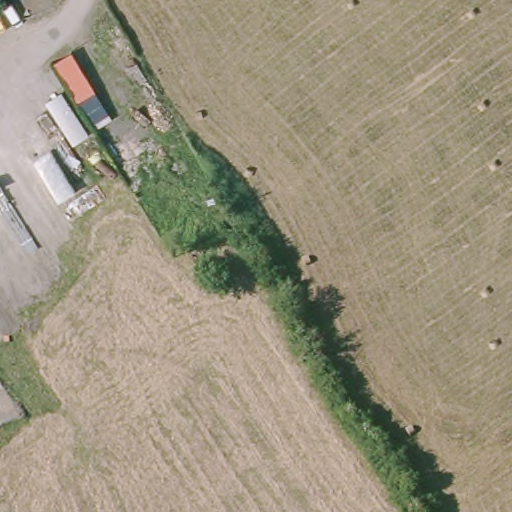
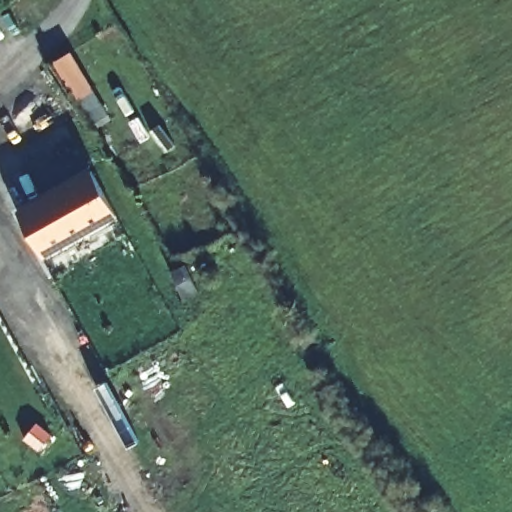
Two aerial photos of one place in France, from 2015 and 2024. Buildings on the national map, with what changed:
new [(92,129),(52,62),(72,52),(112,118),(92,129)]
new [(42,259),(17,212),(92,169),(118,217),(42,259)]

